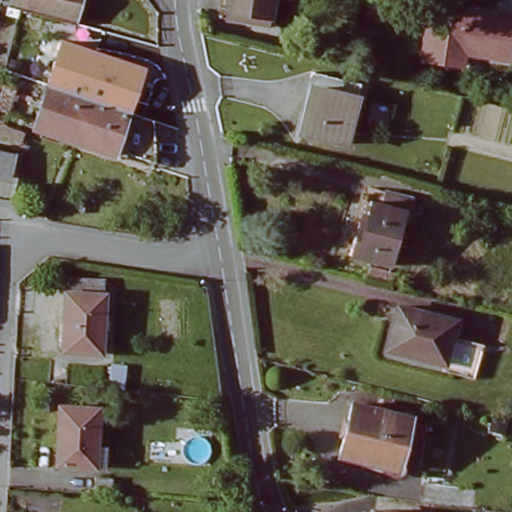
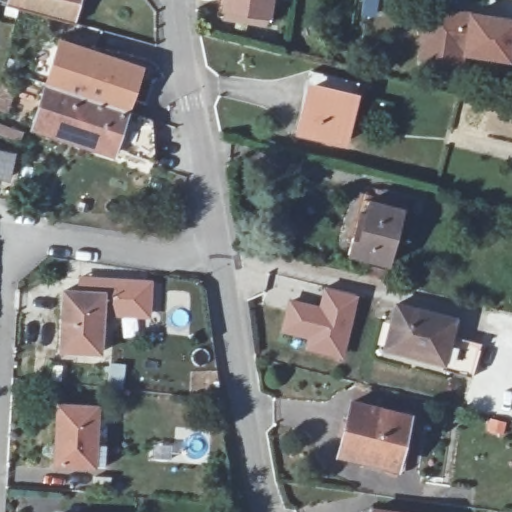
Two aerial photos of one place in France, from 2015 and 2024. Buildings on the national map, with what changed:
unchanged [(14,4),(3,1),(3,0),(79,0),(74,19),(62,16),(14,4)]
unchanged [(224,8),(225,0),(270,0),(268,15),(224,8)]
unchanged [(468,54),(466,68),(420,60),(429,5),(512,17),(512,54),(511,61),(468,54)]
unchanged [(31,128),(46,84),(60,41),(143,69),(129,110),(114,154),(31,128)]
unchanged [(335,144),(294,131),(306,83),(348,94),(335,144)]
unchanged [(7,180),(0,179),(0,148),(12,149),(7,180)]
unchanged [(388,264),(347,253),(361,194),(403,205),(388,264)]
unchanged [(105,287),(101,360),(57,358),(61,284),(105,287)]
new [(287,297),(318,304),(323,286),(358,294),(342,359),(303,350),(306,338),(279,332),(287,297)]
unchanged [(394,303),(450,317),(438,364),(383,348),(394,303)]
unchanged [(100,405),(98,467),(46,464),(49,403),(100,405)]
unchanged [(337,453),(349,408),(350,403),(407,417),(406,420),(395,468),(337,453)]

